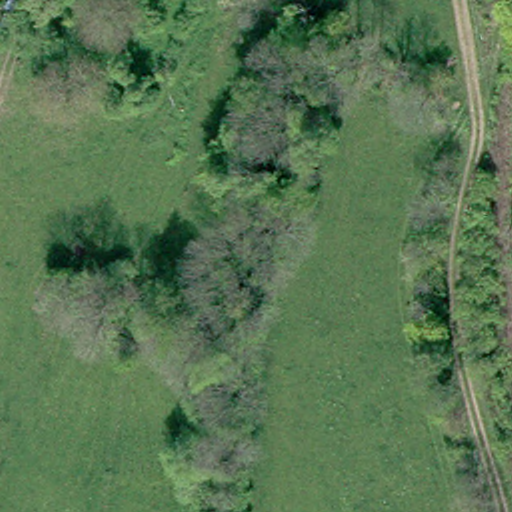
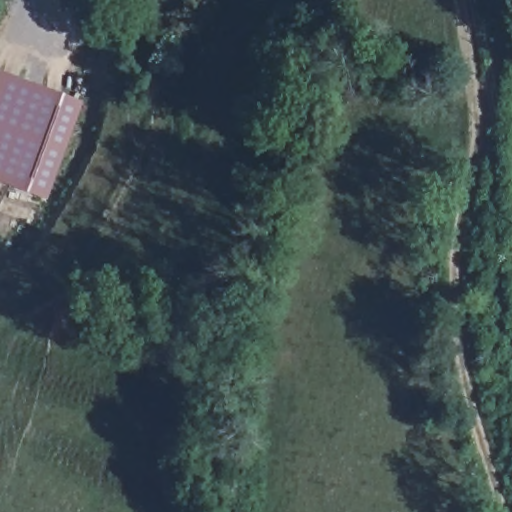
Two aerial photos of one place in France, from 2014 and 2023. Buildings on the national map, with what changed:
new [(83,102),(48,201),(0,183),(0,73),(83,102)]

